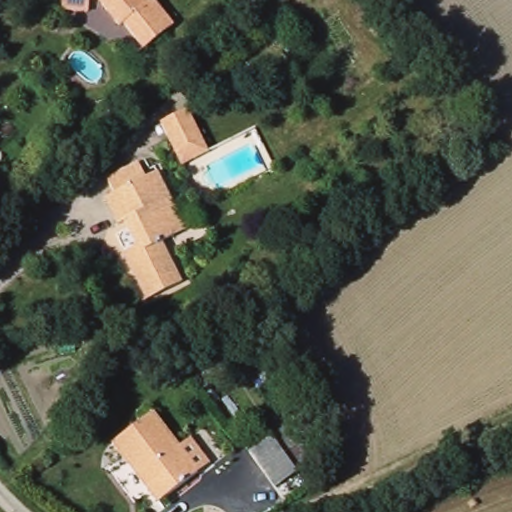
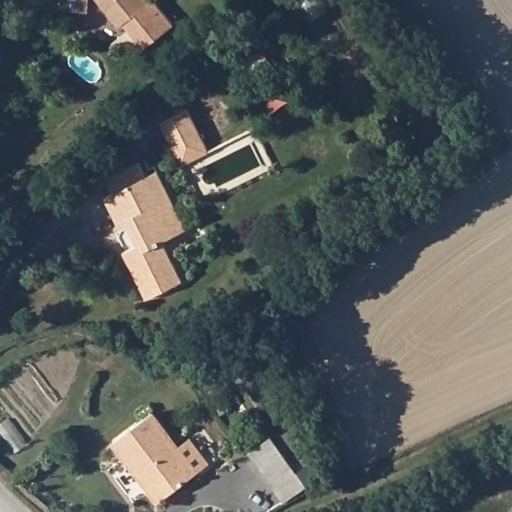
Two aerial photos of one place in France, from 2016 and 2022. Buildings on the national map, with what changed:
unchanged [(72,0),(98,0),(97,11),(72,10),(72,0)]
unchanged [(155,43),(134,19),(130,23),(110,0),(168,0),(184,18),(155,43)]
unchanged [(182,166),(176,153),(162,123),(189,110),(203,140),(209,153),(182,166)]
unchanged [(123,224),(110,198),(119,193),(112,179),(144,163),(151,178),(163,172),(180,207),(191,231),(179,237),(167,243),(187,282),(152,300),(129,253),(142,246),(130,221),(123,224)]
unchanged [(113,443),(153,413),(179,448),(191,438),(211,464),(198,473),(159,503),(149,489),(125,458),(113,443)]
unchanged [(289,427),(302,443),(289,453),(303,472),(281,488),(255,452),(277,436),(289,427)]

